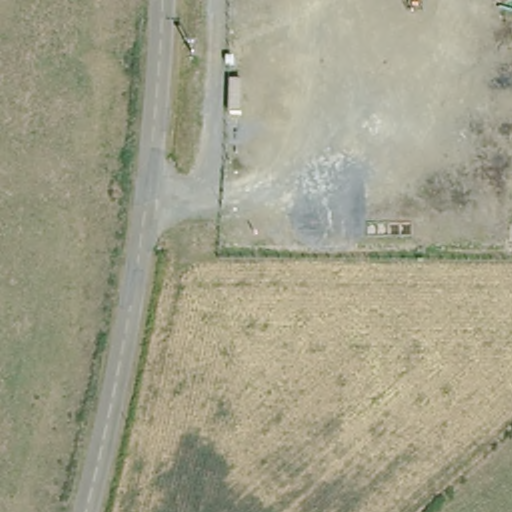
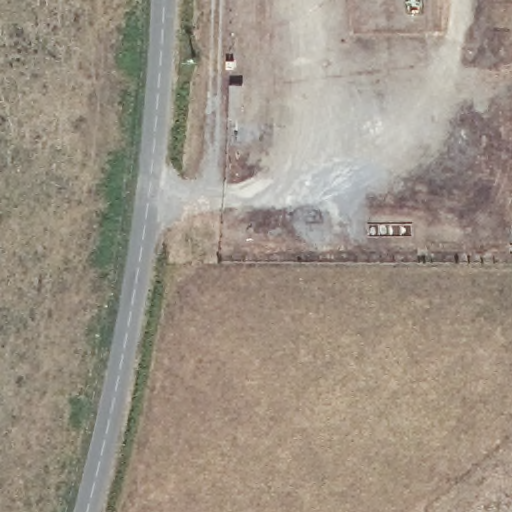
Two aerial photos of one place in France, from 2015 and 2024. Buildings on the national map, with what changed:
unchanged [(227,126),(227,91),(243,92),(244,126),(227,126)]

